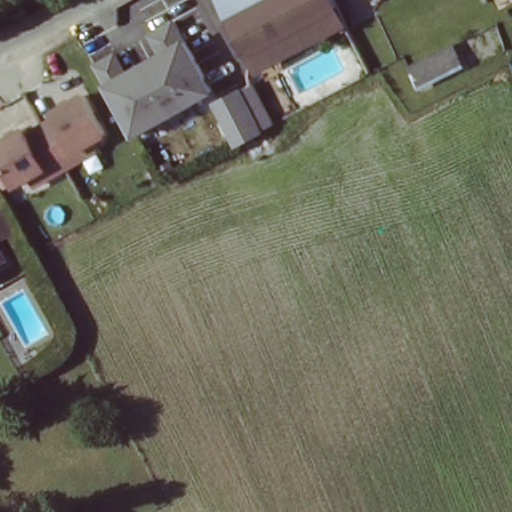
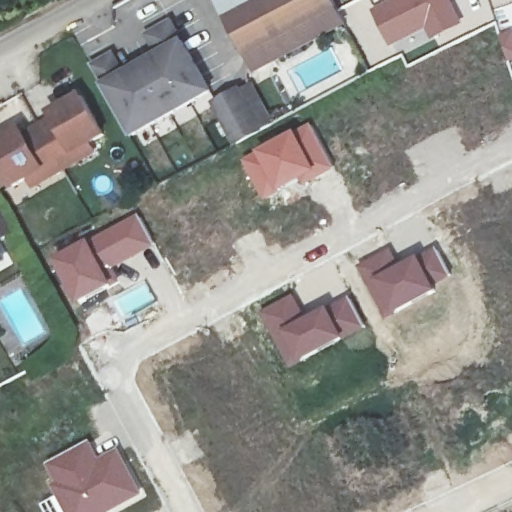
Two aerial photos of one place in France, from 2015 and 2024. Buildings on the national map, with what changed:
unchanged [(140,6),(137,0),(151,0),(140,6)]
unchanged [(222,4),(219,0),(229,0),(222,4)]
unchanged [(347,18),(255,66),(222,4),(229,0),(338,0),(347,18)]
new [(389,0),(453,0),(465,24),(434,39),(427,26),(392,45),(373,8),(389,0)]
unchanged [(185,40),(214,92),(134,139),(105,87),(93,66),(116,52),(126,72),(158,53),(148,34),(173,20),(185,40)]
demolished [(423,91),(411,72),(462,48),(473,68),(423,91)]
unchanged [(275,123),(264,129),(265,131),(258,135),(267,153),(248,162),(242,146),(235,148),(213,103),(241,88),(243,91),(256,83),(275,123)]
unchanged [(98,151),(102,157),(45,191),(36,181),(17,191),(0,163),(0,145),(23,131),(28,138),(58,123),(52,112),(85,97),(113,142),(98,151)]
unchanged [(0,237),(0,208),(13,230),(0,237)]
new [(140,214),(157,245),(110,270),(117,283),(79,303),(57,260),(140,214)]
new [(395,249),(403,265),(438,247),(455,277),(439,287),(441,291),(387,320),(359,267),(395,249)]
unchanged [(0,265),(0,261),(2,264),(0,265)]
new [(295,294),(309,317),(350,295),(368,329),(290,369),(260,312),(295,294)]
new [(45,464),(91,439),(101,454),(118,445),(145,495),(113,512),(45,512),(41,503),(57,494),(45,464)]

